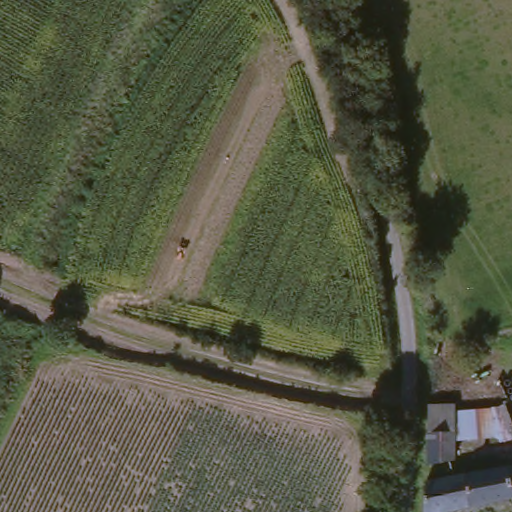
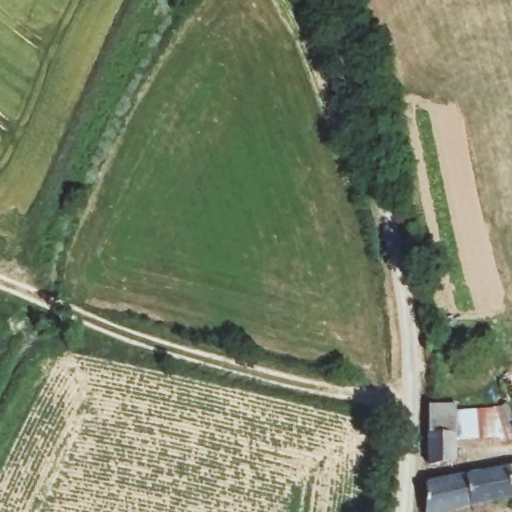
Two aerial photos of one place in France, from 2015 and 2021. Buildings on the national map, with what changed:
unchanged [(451,408),(453,467),(427,468),(424,409),(451,408)]
unchanged [(500,414),(504,446),(458,444),(459,412),(500,414)]
unchanged [(512,511),(506,503),(459,512),(424,512),(420,482),(512,464),(512,511)]

